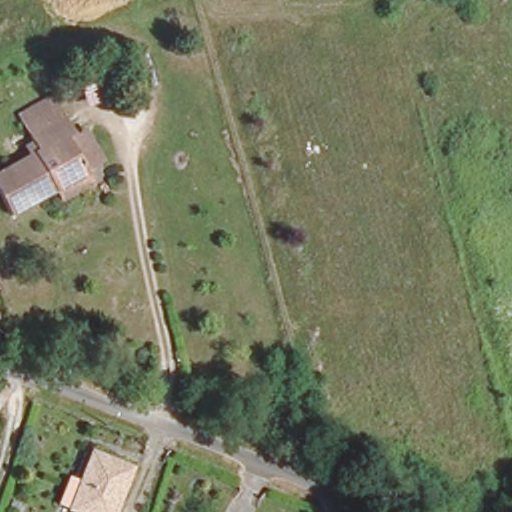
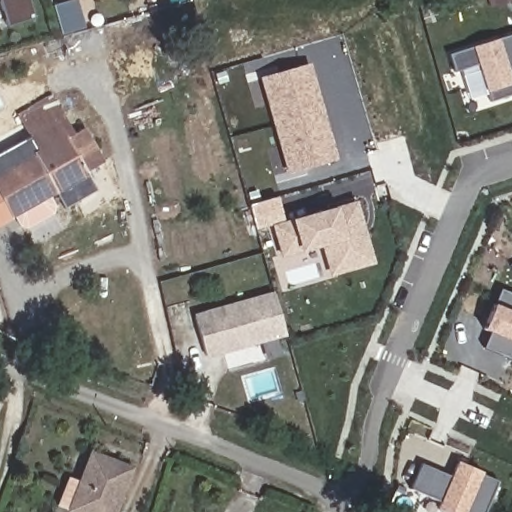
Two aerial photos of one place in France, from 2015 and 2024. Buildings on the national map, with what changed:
new [(8,25),(0,0),(30,0),(35,17),(8,25)]
new [(500,37),(500,39),(512,35),(512,95),(489,101),(477,65),(452,73),(447,53),(472,46),(500,37)]
new [(287,174),(259,77),(310,63),(337,159),(287,174)]
unchanged [(0,200),(0,166),(24,155),(18,141),(31,135),(28,127),(20,112),(54,98),(62,112),(73,129),(68,132),(87,168),(93,180),(53,197),(49,188),(5,211),(0,200)]
new [(278,196),(284,221),(290,220),(335,207),(356,201),(375,264),(329,277),(318,248),(301,252),(281,258),(272,226),(255,229),(249,205),(278,196)]
new [(512,270),(509,266),(512,265),(512,270)]
new [(482,329),(492,304),(500,289),(512,294),(512,360),(483,347),(487,331),(482,329)]
new [(205,359),(193,314),(273,292),(285,336),(205,359)]
unchanged [(128,464),(105,512),(87,512),(64,500),(90,446),(128,464)]
new [(456,461),(483,472),(481,476),(497,482),(484,512),(440,512),(435,510),(439,502),(410,489),(420,464),(450,476),(456,461)]

